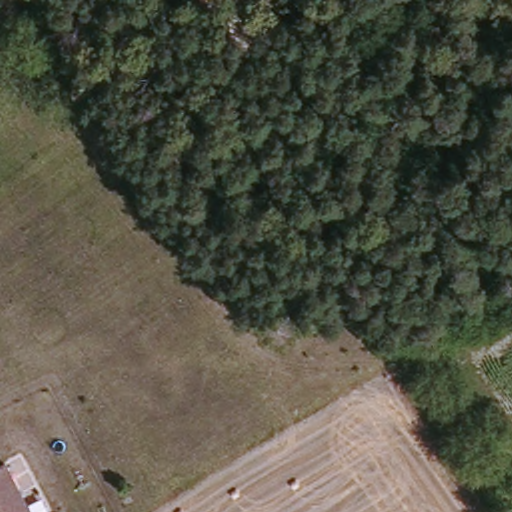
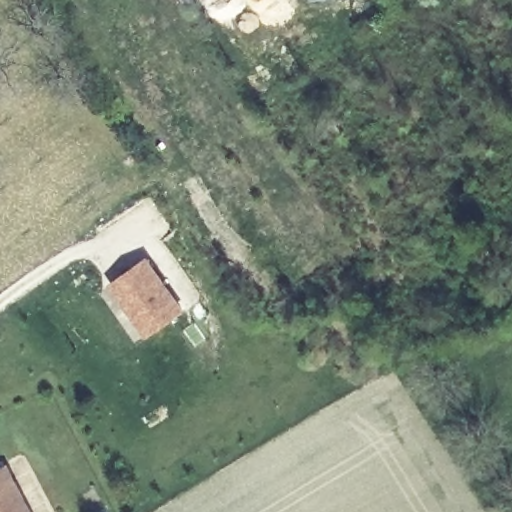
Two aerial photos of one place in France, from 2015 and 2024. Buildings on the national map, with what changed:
new [(144,261),(181,310),(149,334),(112,286),(144,261)]
unchanged [(8,464),(32,507),(35,512),(0,512),(0,468),(8,464)]

